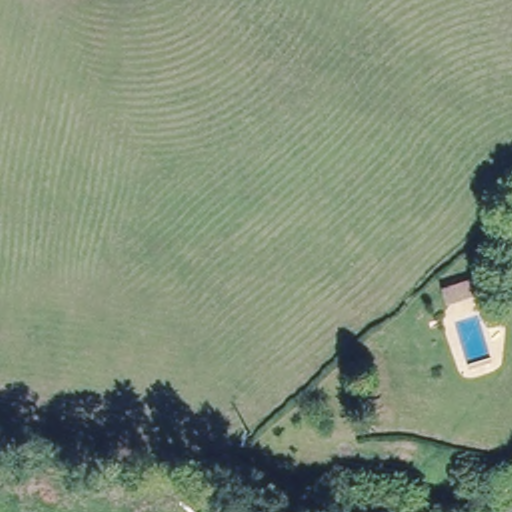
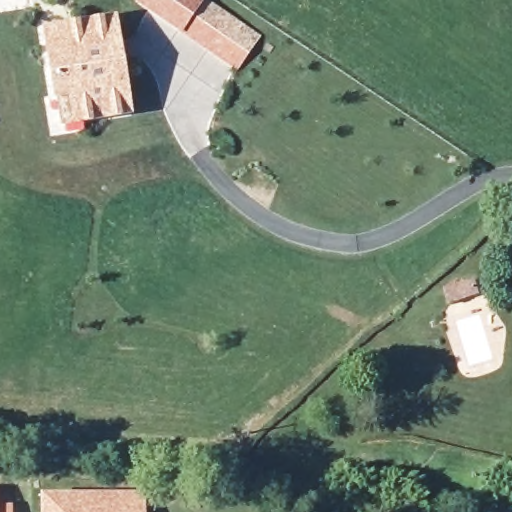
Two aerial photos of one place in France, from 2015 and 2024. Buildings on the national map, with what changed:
new [(237,71),(181,32),(134,0),(210,0),(262,35),(237,71)]
new [(133,114),(61,125),(55,101),(43,26),(118,14),(133,114)]
unchanged [(474,280),(478,295),(450,302),(446,288),(474,280)]
new [(145,490),(145,512),(41,512),(41,490),(145,490)]
new [(13,502),(13,512),(0,512),(0,502),(13,502)]

